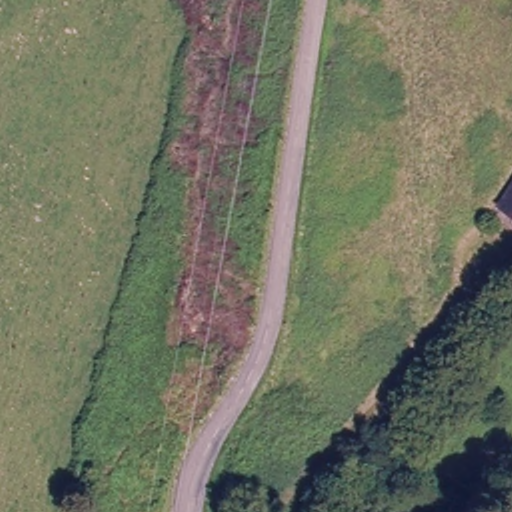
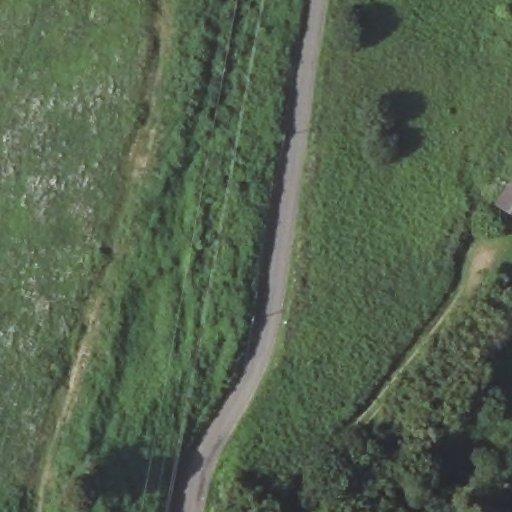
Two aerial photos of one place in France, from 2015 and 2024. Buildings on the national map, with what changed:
unchanged [(498,207),(512,185),(512,215),(498,207)]

